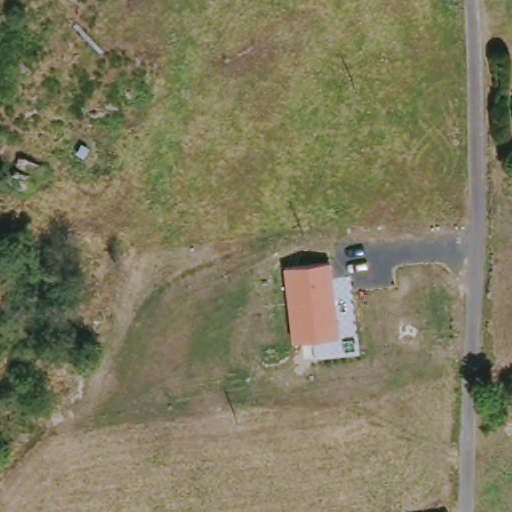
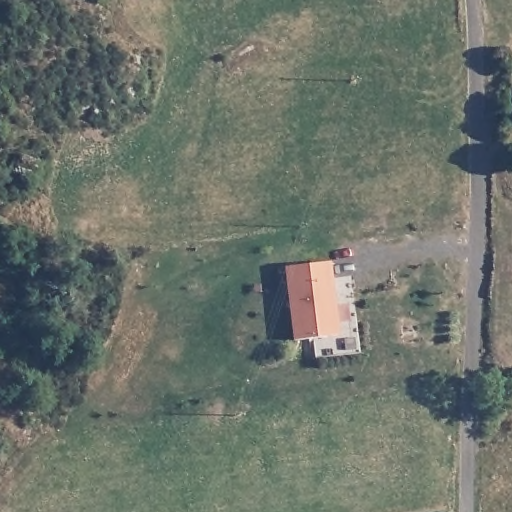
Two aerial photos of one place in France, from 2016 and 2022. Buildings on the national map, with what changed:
unchanged [(330,262),(332,275),(350,273),(358,348),(315,353),(312,337),(292,338),(284,264),(330,262)]

